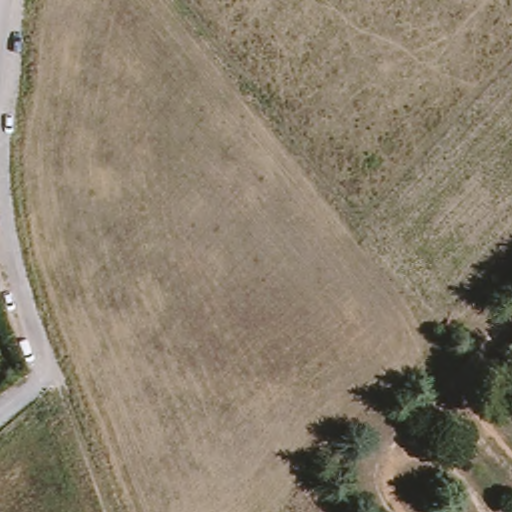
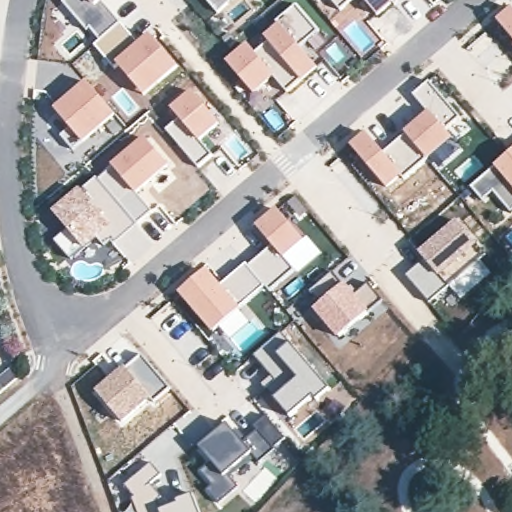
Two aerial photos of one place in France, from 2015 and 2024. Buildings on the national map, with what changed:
new [(63,0),(88,0),(95,7),(102,1),(133,38),(108,60),(93,44),(97,41),(61,2),(63,0)]
new [(102,1),(95,7),(88,0),(103,0),(102,1)]
new [(218,15),(205,0),(234,0),(218,15)]
new [(330,0),(353,0),(340,12),(330,0)]
new [(393,3),(376,16),(363,0),(397,0),(393,3)]
new [(266,41),(263,37),(277,25),(275,23),(298,4),(320,31),(302,46),(318,67),(301,81),(286,93),(274,77),(253,95),(225,62),(249,44),(255,51),(266,41)]
new [(512,9),(512,38),(497,20),(512,9)]
new [(151,35),(179,66),(143,97),(115,65),(151,35)]
new [(383,151),(403,133),(426,111),(413,95),(430,81),(462,116),(472,127),(454,141),(461,150),(441,166),(433,156),(426,160),(404,177),(383,151)]
new [(88,83),(116,115),(73,151),(60,135),(68,128),(54,109),(88,83)]
new [(170,108),(192,92),(218,123),(200,141),(211,155),(198,167),(165,130),(178,118),(170,108)]
new [(118,242),(115,248),(111,243),(104,247),(98,240),(85,251),(83,248),(70,259),(53,240),(66,229),(51,211),(111,165),(146,138),(169,164),(136,194),(152,210),(118,242)]
new [(510,213),(492,194),(483,201),(470,186),(512,151),(512,211),(510,213)]
new [(279,209),(306,238),(283,258),(271,245),(256,226),(279,209)]
new [(484,253),(478,258),(447,286),(418,252),(456,219),(484,253)]
new [(271,245),(283,258),(294,270),(269,291),(266,288),(246,265),(271,245)]
new [(405,275),(424,259),(447,286),(429,302),(405,275)]
new [(245,263),(246,265),(266,288),(241,309),(220,283),(245,263)]
new [(208,270),(220,283),(241,309),(213,333),(178,293),(208,270)]
new [(346,282),(371,311),(339,339),(313,309),(346,282)]
new [(281,333),(331,389),(290,418),(262,383),(271,376),(253,356),(281,333)]
new [(95,391),(125,366),(139,354),(170,388),(153,403),(151,401),(122,424),(95,391)]
new [(258,432),(252,425),(264,414),(285,438),(259,461),(252,453),(243,443),(258,432)]
new [(198,447),(226,421),(252,453),(226,477),(237,488),(216,504),(205,489),(208,486),(196,472),(210,461),(198,447)]
new [(137,512),(131,495),(123,486),(150,462),(160,474),(149,484),(171,508),(178,505),(177,501),(193,495),(200,512),(137,512)]

